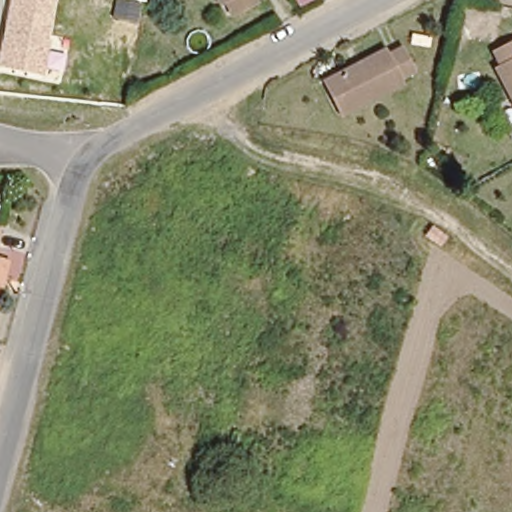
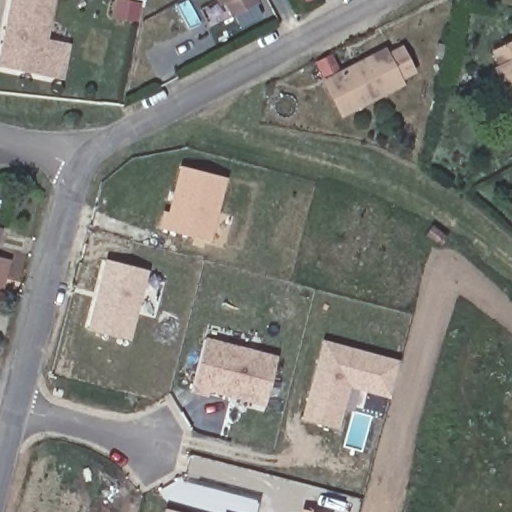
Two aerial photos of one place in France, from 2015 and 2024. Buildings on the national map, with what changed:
unchanged [(50,40),(43,75),(0,67),(0,45),(9,0),(55,0),(48,40),(50,40)]
unchanged [(234,19),(227,5),(223,6),(220,0),(254,0),(258,7),(234,19)]
unchanged [(512,102),(495,69),(500,66),(494,51),(512,42),(512,102)]
unchanged [(401,46),(414,70),(400,78),(402,81),(340,111),(325,80),(384,49),(386,54),(401,46)]
new [(221,176),(206,240),(158,228),(162,211),(167,212),(178,166),(221,176)]
unchanged [(1,277),(0,282),(0,259),(5,260),(1,277)]
new [(144,271),(126,338),(86,328),(103,261),(144,271)]
new [(264,406),(208,391),(207,396),(190,391),(205,336),(277,355),(264,406)]
new [(389,397),(349,388),(338,428),(300,418),(322,339),(399,360),(389,397)]
unchanged [(252,451),(232,446),(237,427),(257,432),(252,451)]
new [(306,508),(320,512),(305,512),(306,508)]

